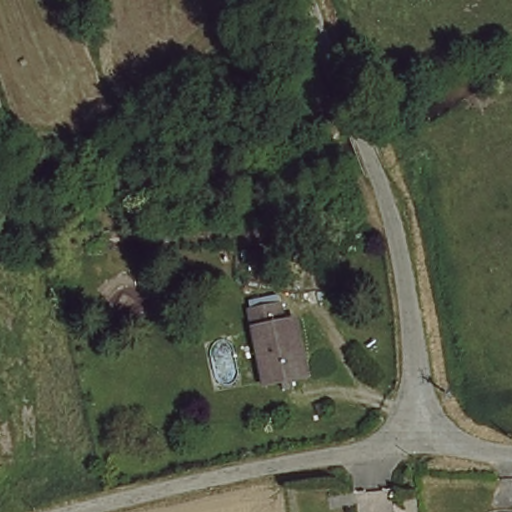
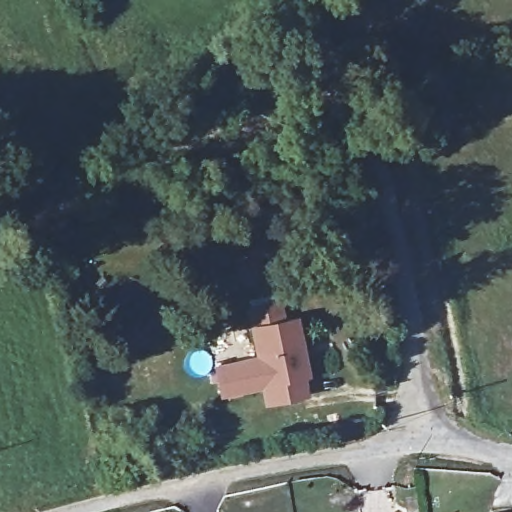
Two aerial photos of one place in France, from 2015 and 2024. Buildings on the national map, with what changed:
unchanged [(291,322),(301,378),(259,386),(245,315),(273,308),(278,325),(291,322)]
new [(220,396),(213,365),(253,355),(259,386),(220,396)]
unchanged [(308,395),(266,404),(261,385),(301,378),(308,395)]

